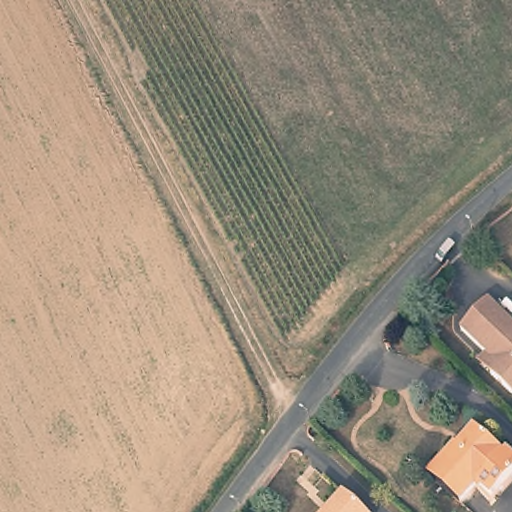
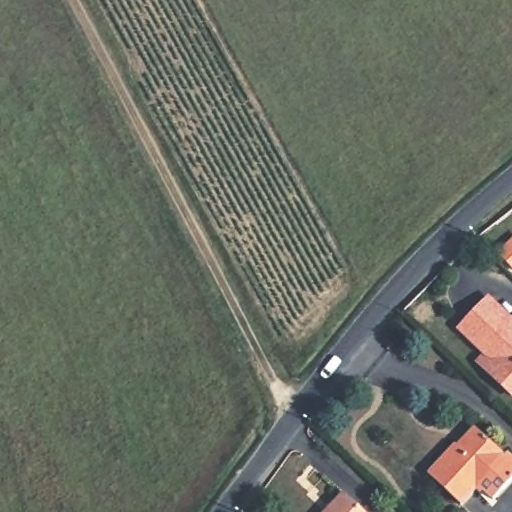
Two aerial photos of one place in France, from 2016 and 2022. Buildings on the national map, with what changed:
unchanged [(462,327),(490,299),(512,321),(512,392),(493,373),(481,362),(490,353),(462,327)]
unchanged [(512,459),(512,482),(492,501),(477,485),(460,501),(429,469),(457,442),(475,425),(479,429),(507,457),(509,456),(512,459)]
unchanged [(364,512),(314,512),(337,487),(364,512)]

